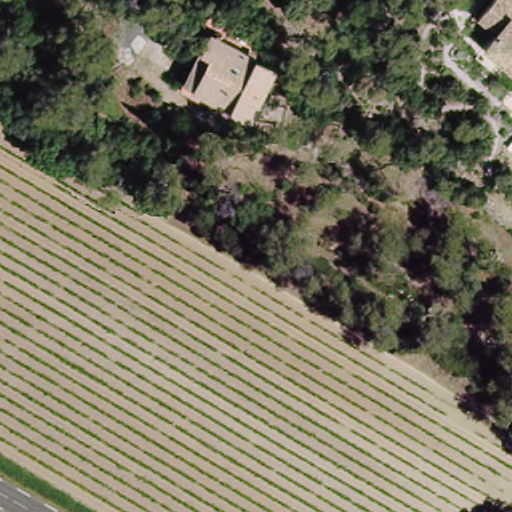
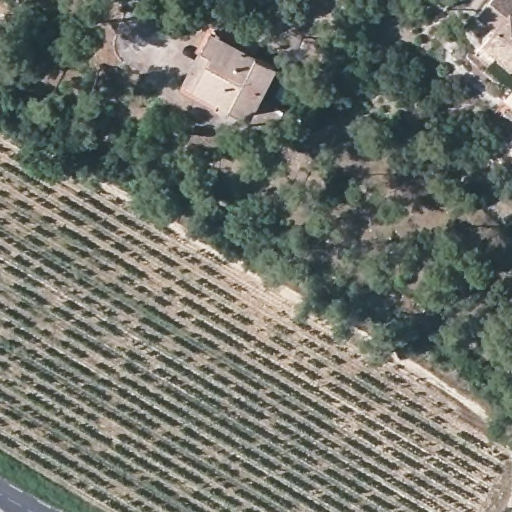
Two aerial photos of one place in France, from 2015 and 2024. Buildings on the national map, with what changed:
unchanged [(492,25),(478,13),(488,0),(512,0),(512,64),(480,42),(492,25)]
unchanged [(176,93),(196,54),(205,37),(198,33),(202,24),(274,63),(243,121),(213,105),(210,111),(176,93)]

